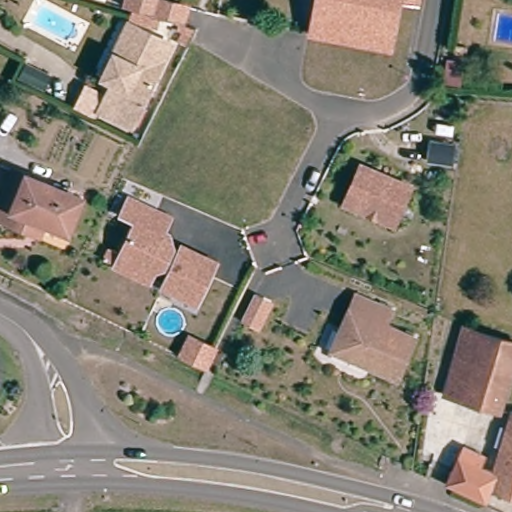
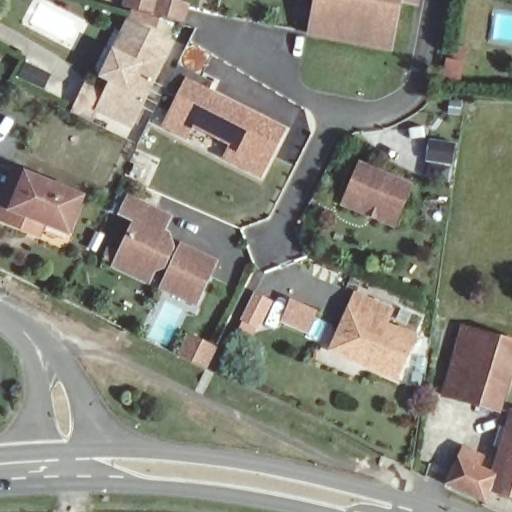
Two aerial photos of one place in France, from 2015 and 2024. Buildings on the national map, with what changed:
unchanged [(191,6),(187,21),(159,12),(130,4),(131,0),(171,0),(191,6)]
unchanged [(310,34),(316,0),(400,0),(391,49),(310,34)]
unchanged [(417,3),(416,2),(403,0),(418,0),(417,3)]
unchanged [(136,127),(104,111),(117,82),(107,77),(103,75),(114,53),(118,55),(134,23),(176,45),(136,127)]
unchanged [(49,77),(40,96),(15,83),(25,66),(49,77)]
new [(224,160),(230,147),(196,130),(190,141),(162,126),(177,96),(167,92),(180,67),(214,84),(210,91),(287,130),(264,180),(224,160)]
unchanged [(427,162),(430,144),(456,149),(452,167),(427,162)]
unchanged [(347,203),(350,197),(365,162),(416,184),(401,218),(398,225),(347,203)]
unchanged [(7,220),(0,217),(0,204),(15,169),(26,174),(81,197),(67,232),(44,222),(39,233),(30,230),(7,220)]
unchanged [(114,268),(119,257),(136,224),(121,215),(129,201),(169,221),(161,235),(167,238),(170,251),(168,256),(176,260),(180,251),(214,267),(194,307),(160,291),(169,275),(160,271),(152,273),(146,285),(114,268)]
unchanged [(354,307),(360,292),(396,307),(390,322),(420,335),(403,376),(375,365),(337,348),(354,307)]
unchanged [(268,304),(255,330),(240,322),(252,297),(252,296),(268,304)]
unchanged [(512,341),(512,378),(459,363),(469,328),(512,341)]
unchanged [(179,358),(189,338),(214,351),(204,371),(179,358)]
unchanged [(505,411),(450,396),(459,363),(512,378),(512,388),(505,411)]
unchanged [(497,490),(490,502),(452,484),(468,447),(490,456),(485,467),(497,472),(512,427),(512,494),(497,490)]

